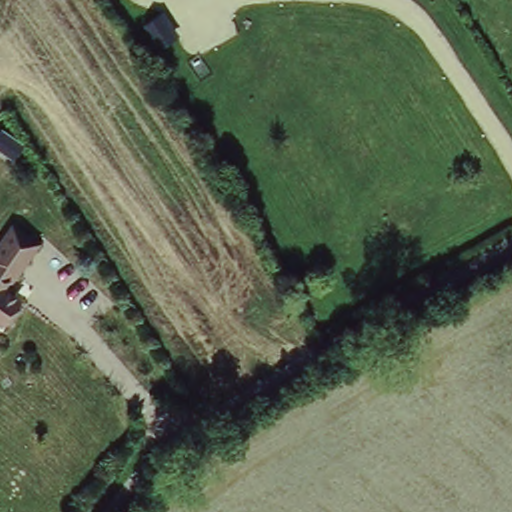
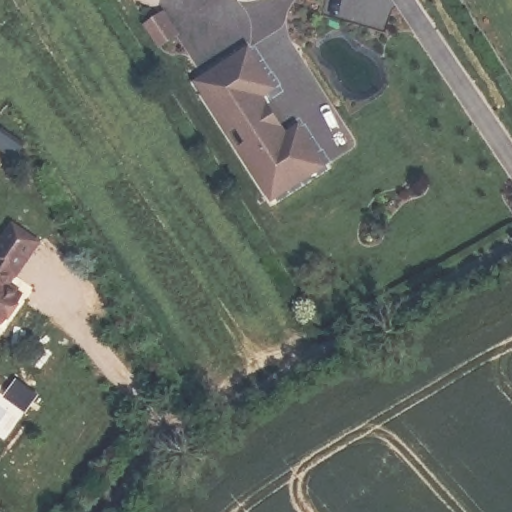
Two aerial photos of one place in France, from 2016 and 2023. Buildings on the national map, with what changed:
new [(166,12),(184,38),(166,51),(146,25),(166,12)]
new [(249,46),(278,90),(265,98),(290,133),(301,126),(329,168),(272,205),(192,84),(249,46)]
unchanged [(10,285),(21,292),(15,300),(20,304),(6,321),(0,317),(0,239),(9,226),(38,244),(10,285)]

